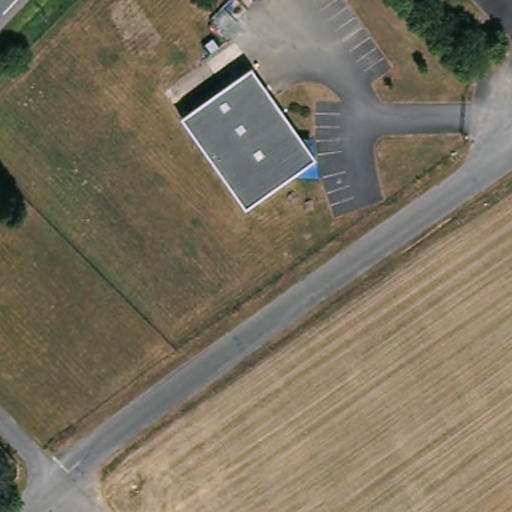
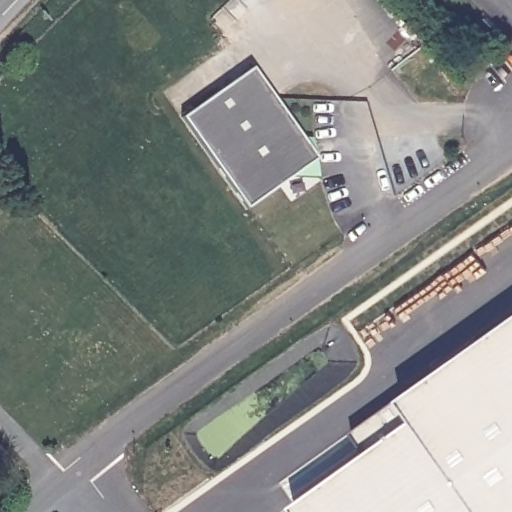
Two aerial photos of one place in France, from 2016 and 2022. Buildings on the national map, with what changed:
unchanged [(253,65),(318,159),(247,208),(182,115),(253,65)]
new [(352,430),(512,316),(512,512),(299,512),(293,503),(366,451),(352,430)]

